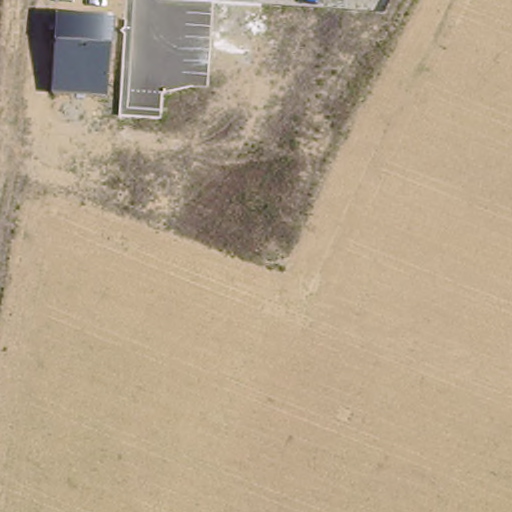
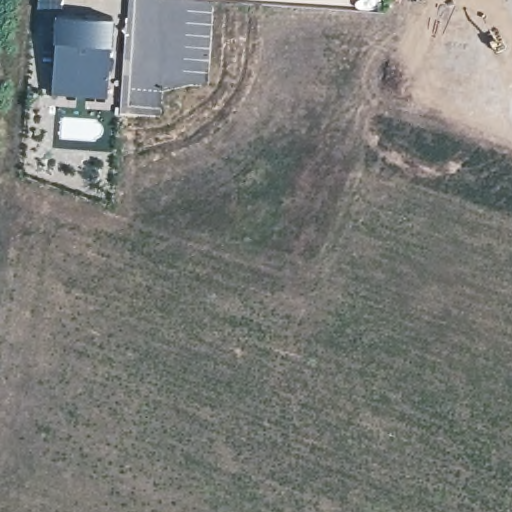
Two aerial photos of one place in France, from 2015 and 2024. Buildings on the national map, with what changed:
unchanged [(111,12),(108,94),(51,91),(55,11),(111,12)]

